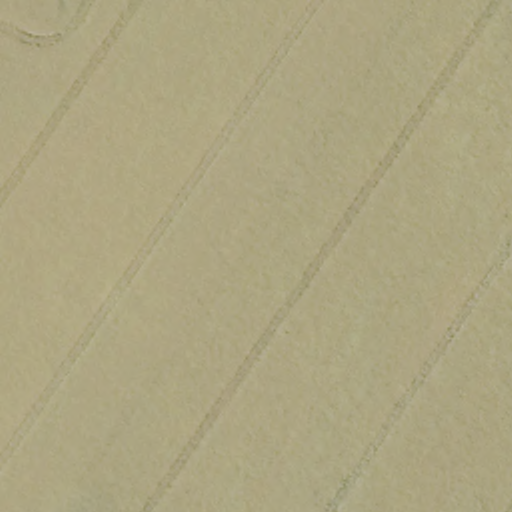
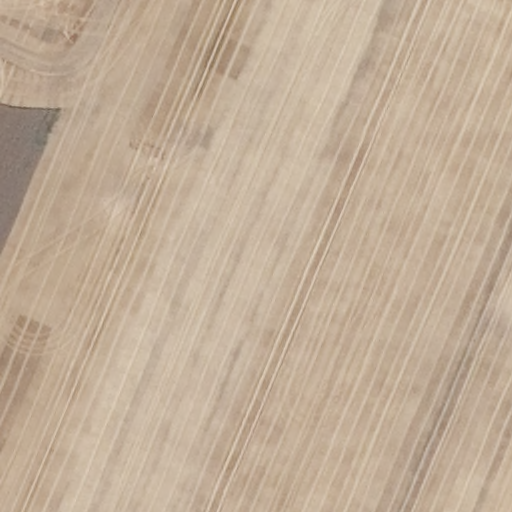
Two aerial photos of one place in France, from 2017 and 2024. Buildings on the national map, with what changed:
[]

